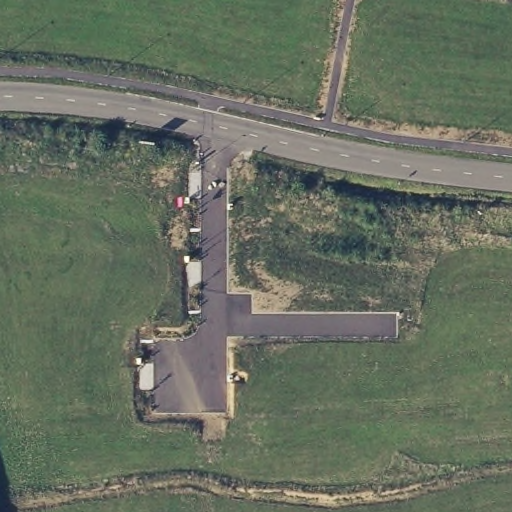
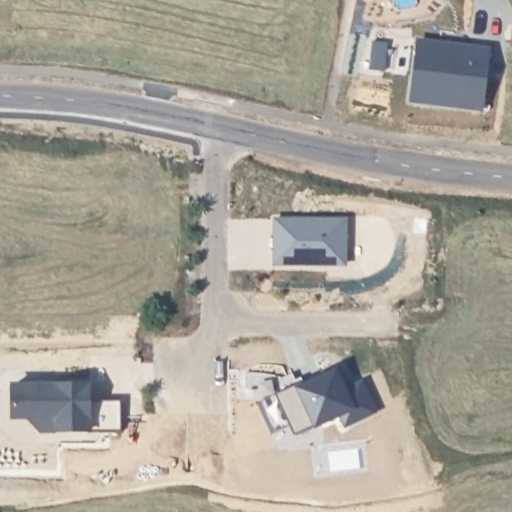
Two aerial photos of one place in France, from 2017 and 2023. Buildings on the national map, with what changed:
new [(442,43),(470,47),(491,50),(484,108),(414,99),(422,41),(442,43)]
new [(277,219),(348,219),(348,262),(319,261),(319,264),(276,264),(277,219)]
new [(78,385),(88,385),(88,394),(88,401),(121,401),(121,435),(88,435),(88,433),(41,433),(30,422),(30,409),(11,409),(11,385),(78,385)]

